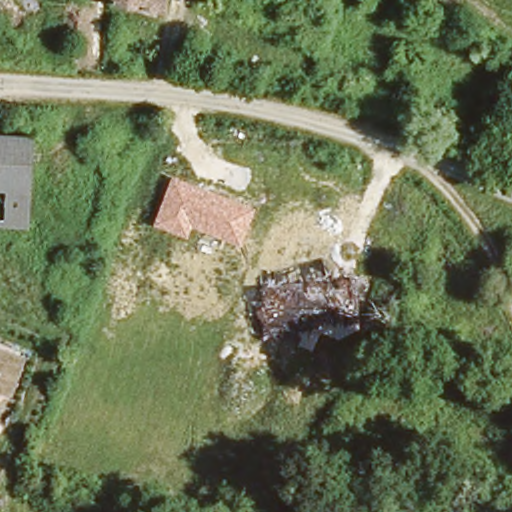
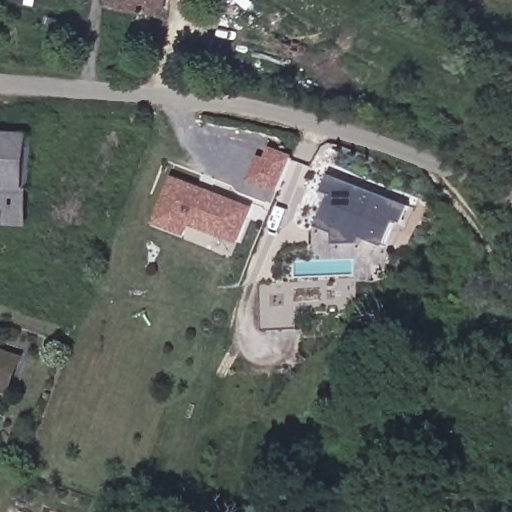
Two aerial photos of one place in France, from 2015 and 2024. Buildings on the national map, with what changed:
unchanged [(24,205),(0,202),(0,144),(31,148),(24,205)]
new [(270,147),(294,156),(280,195),(248,184),(259,156),(265,159),(270,147)]
new [(365,244),(336,245),(335,234),(320,230),(319,216),(328,197),(319,194),(328,172),(409,208),(402,225),(395,225),(384,247),(365,244)]
unchanged [(255,207),(242,245),(192,227),(189,238),(154,225),(172,176),(255,207)]
new [(13,398),(0,394),(0,349),(25,358),(13,396),(13,398)]

